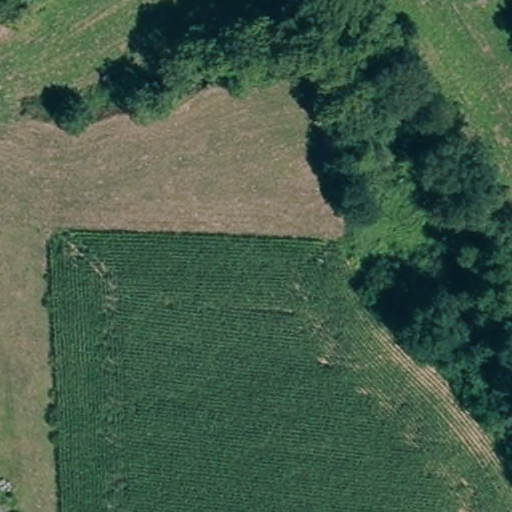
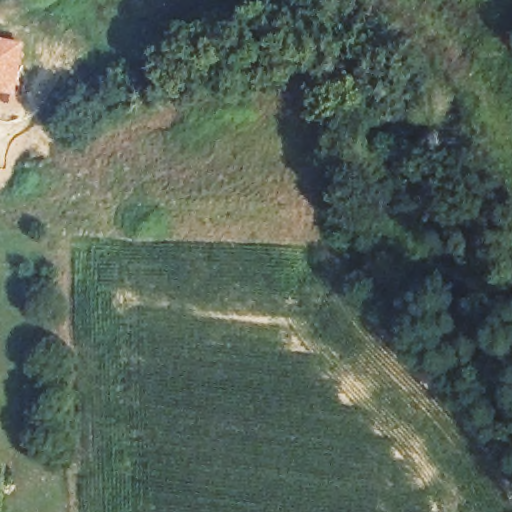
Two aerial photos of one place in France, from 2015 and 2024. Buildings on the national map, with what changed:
new [(14,96),(1,93),(0,95),(0,38),(26,42),(14,96)]

